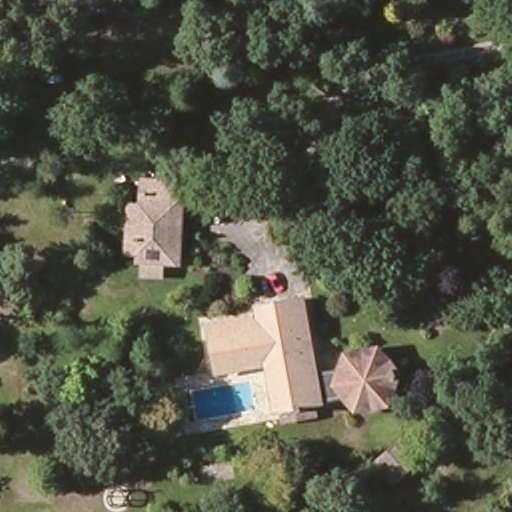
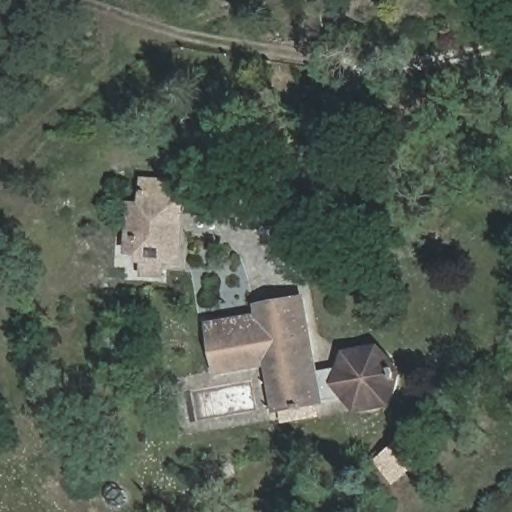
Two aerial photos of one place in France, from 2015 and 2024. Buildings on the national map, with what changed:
unchanged [(130,194),(185,197),(179,280),(122,273),(130,194)]
unchanged [(305,305),(326,403),(288,410),(277,363),(228,373),(217,322),(305,305)]
unchanged [(353,351),(381,351),(398,369),(393,400),(373,408),(346,355),(353,351)]
unchanged [(373,408),(362,413),(338,397),(334,368),(346,355),(373,408)]
unchanged [(421,464),(393,489),(374,464),(403,440),(421,464)]

